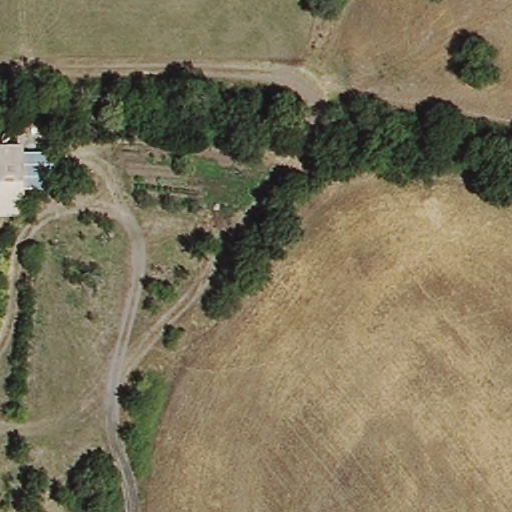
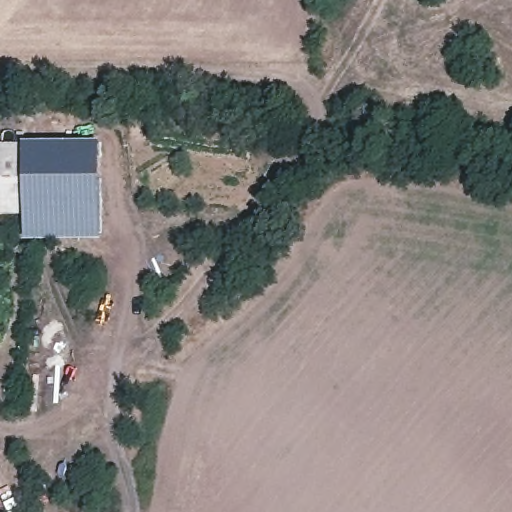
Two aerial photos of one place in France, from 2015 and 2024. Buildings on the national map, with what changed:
new [(101,141),(102,240),(25,241),(24,191),(47,193),(52,156),(23,154),(22,143),(101,141)]
unchanged [(0,146),(21,148),(20,153),(17,190),(13,215),(0,216),(0,214),(0,146)]
unchanged [(47,193),(17,190),(20,153),(52,156),(47,193)]

